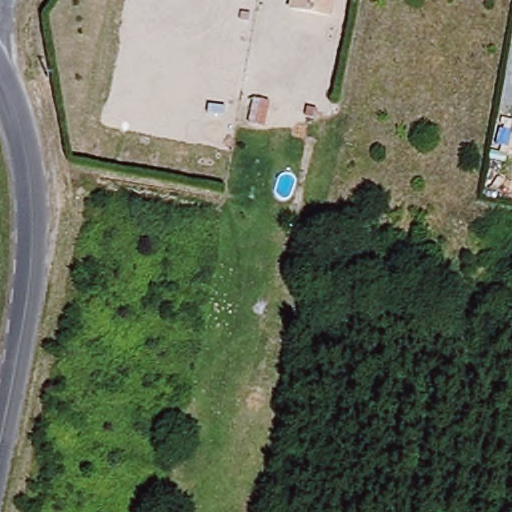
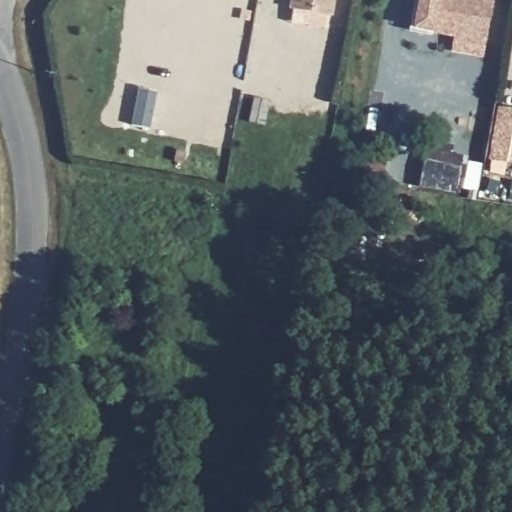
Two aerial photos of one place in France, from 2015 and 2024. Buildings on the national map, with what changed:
unchanged [(288,9),(289,0),(335,0),(332,15),(288,9)]
new [(488,0),(482,37),(412,25),(416,0),(488,0)]
new [(495,104),(512,107),(512,164),(506,163),(503,176),(488,173),(490,160),(484,160),(495,104)]
new [(426,142),(467,149),(460,190),(456,189),(453,204),(416,197),(426,142)]

